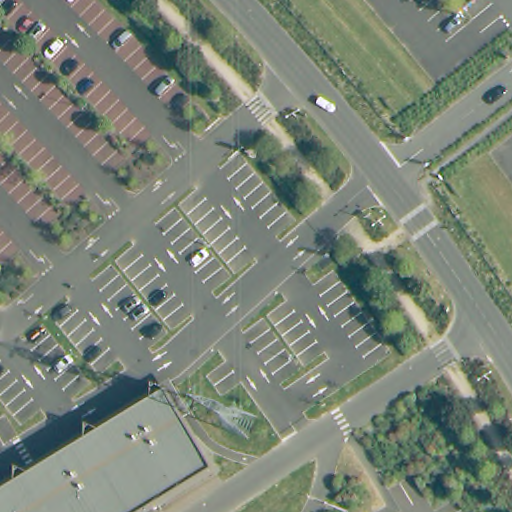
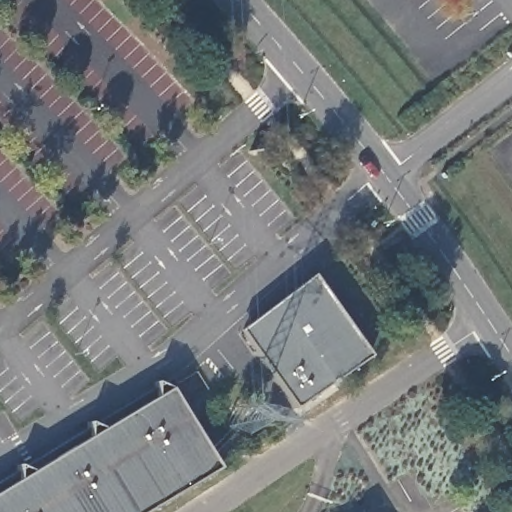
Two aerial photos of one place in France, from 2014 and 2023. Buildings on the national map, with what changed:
new [(290,409),(238,334),(236,330),(310,274),(318,286),(366,356),(290,409)]
unchanged [(165,389),(172,382),(191,416),(184,421),(215,471),(148,512),(0,512),(0,490),(165,389)]

